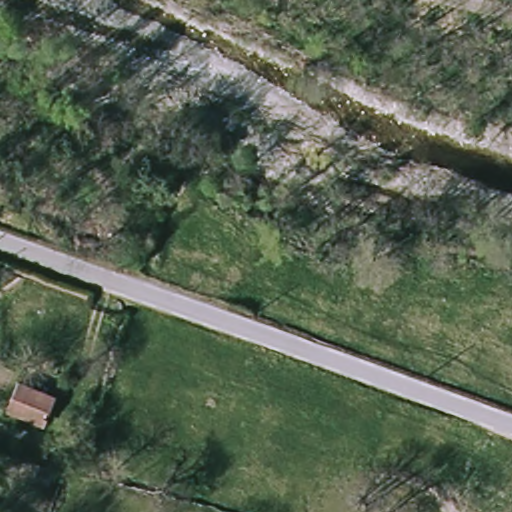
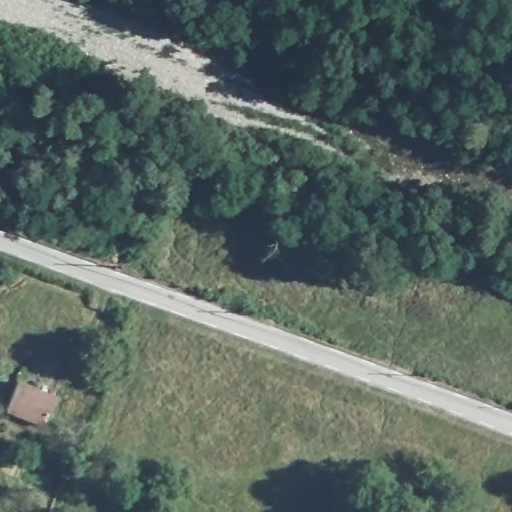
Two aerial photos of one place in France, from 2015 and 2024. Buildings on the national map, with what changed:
unchanged [(56,395),(45,426),(8,412),(20,382),(56,395)]

